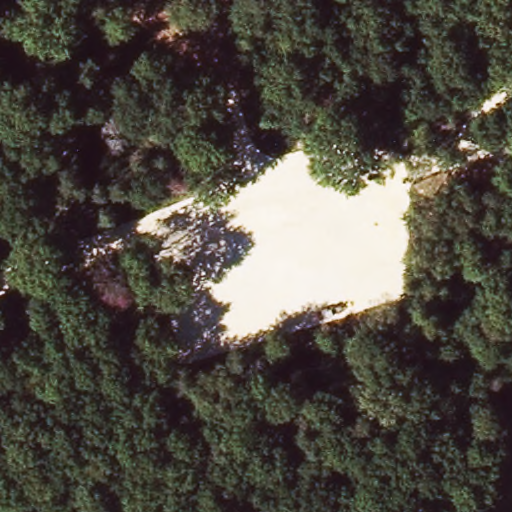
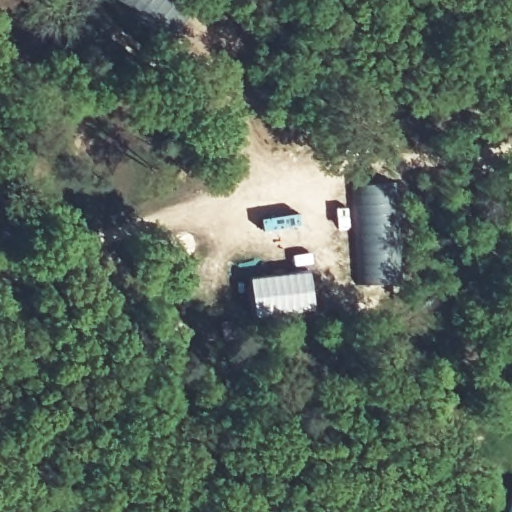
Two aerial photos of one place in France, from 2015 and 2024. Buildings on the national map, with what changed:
new [(353,185),(396,182),(404,278),(359,284),(353,185)]
new [(310,272),(313,310),(254,316),(250,278),(310,272)]
new [(512,491),(512,512),(507,512),(512,491)]

